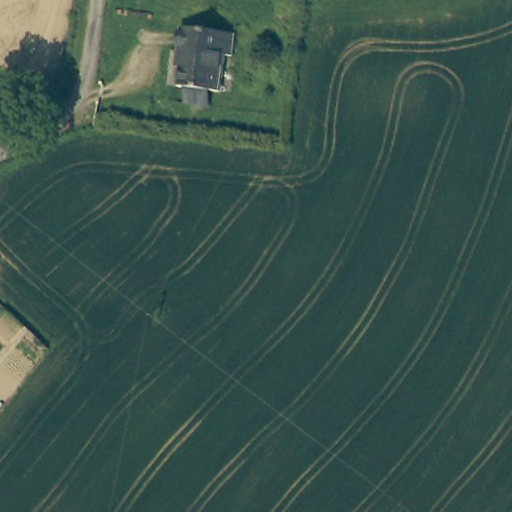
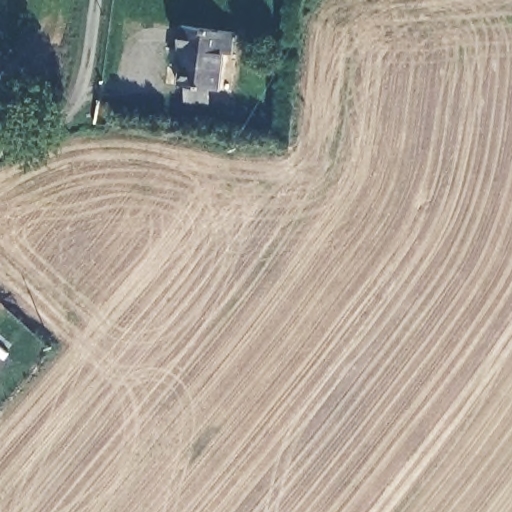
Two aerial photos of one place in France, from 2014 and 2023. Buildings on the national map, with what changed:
unchanged [(192,92),(194,79),(184,77),(189,43),(186,43),(190,21),(241,27),(239,47),(232,47),(227,84),(214,82),(213,95),(192,92)]

